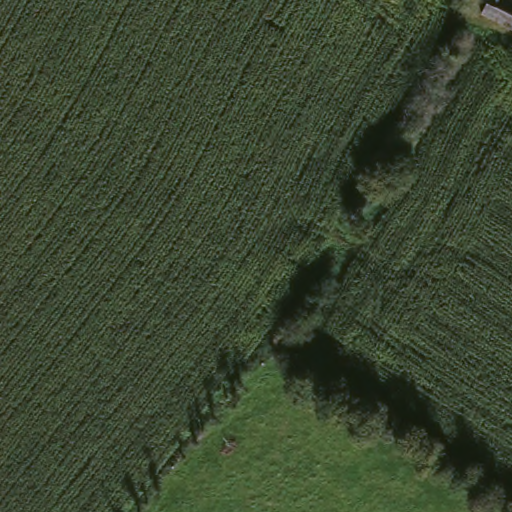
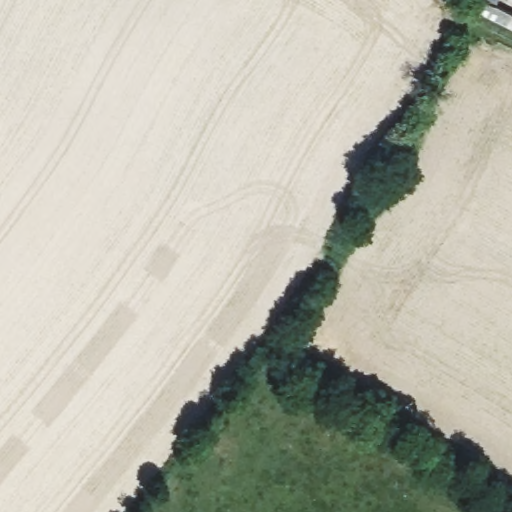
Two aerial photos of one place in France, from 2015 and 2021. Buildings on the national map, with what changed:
unchanged [(512,25),(512,45),(493,35),(481,30),(494,0),(509,0),(500,18),(512,25)]

